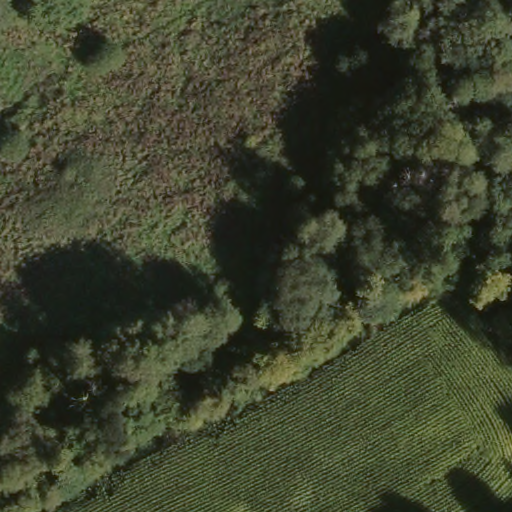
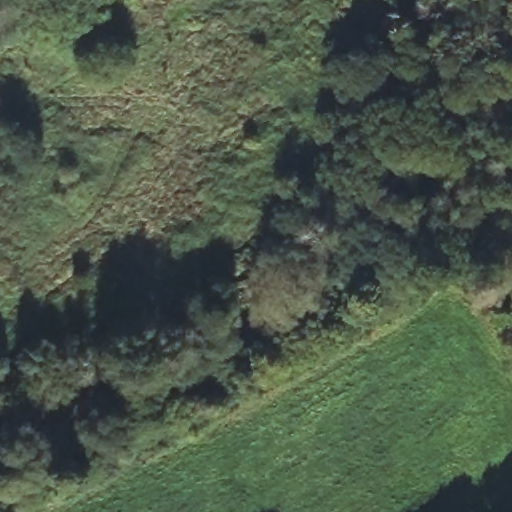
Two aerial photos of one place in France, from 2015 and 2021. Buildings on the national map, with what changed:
[]

